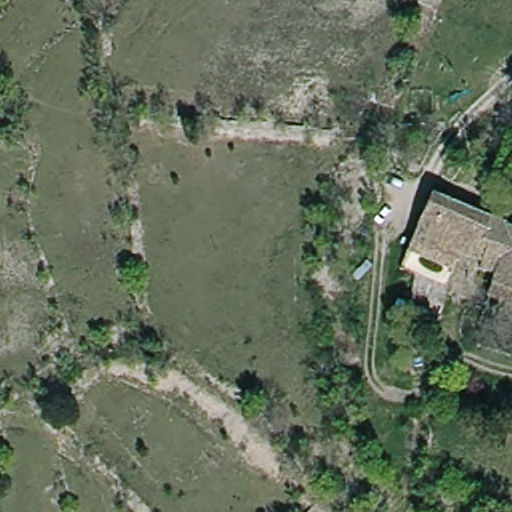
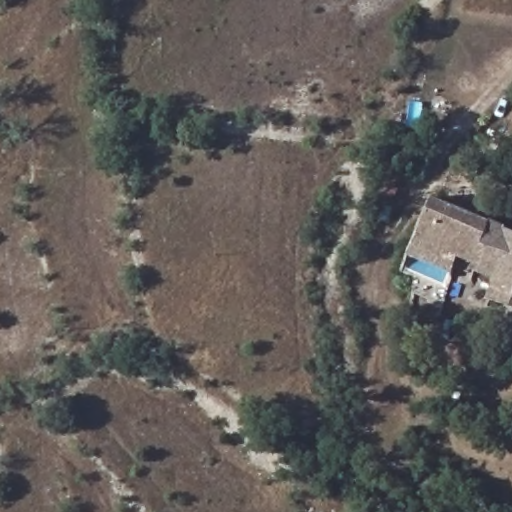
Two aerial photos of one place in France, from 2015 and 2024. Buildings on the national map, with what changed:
unchanged [(486,301),(494,279),(482,273),(479,280),(455,271),(440,306),(407,293),(409,275),(396,269),(428,196),(487,221),(512,232),(512,310),(486,301)]

